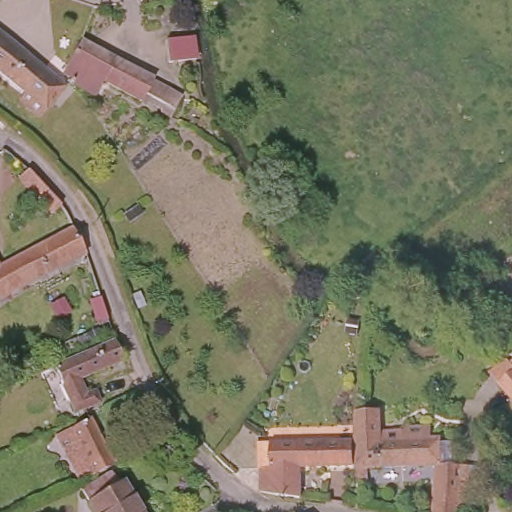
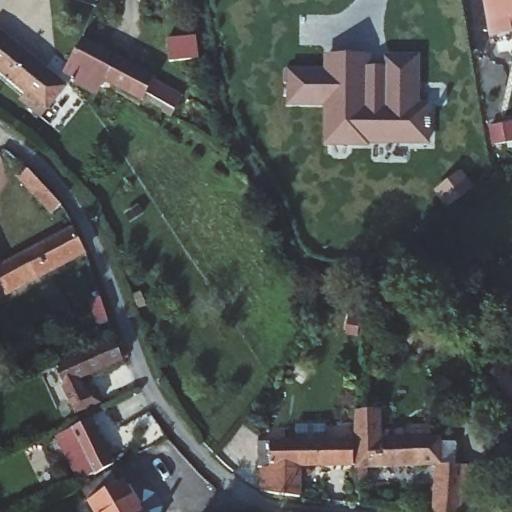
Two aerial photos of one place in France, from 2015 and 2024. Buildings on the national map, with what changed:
new [(490,37),(483,0),(512,0),(512,27),(512,34),(490,37)]
unchanged [(45,107),(0,71),(0,35),(64,86),(61,88),(45,107)]
unchanged [(171,63),(169,42),(195,38),(198,59),(171,63)]
unchanged [(151,76),(150,78),(179,93),(169,113),(159,107),(160,106),(156,104),(145,98),(143,101),(126,92),(122,90),(101,78),(94,91),(69,78),(71,76),(72,74),(62,70),(78,39),(151,76)]
new [(382,54),(421,55),(421,103),(431,102),(431,145),(323,147),(323,106),(287,107),(287,69),(323,69),(324,54),(370,54),(370,65),(382,65),(382,54)]
unchanged [(64,209),(59,213),(55,208),(50,213),(17,178),(26,170),(64,209)]
unchanged [(0,295),(0,266),(71,227),(84,251),(0,295)]
unchanged [(74,375),(82,390),(92,385),(97,395),(72,407),(51,363),(86,348),(85,346),(94,342),(95,345),(111,337),(118,355),(74,375)]
new [(500,385),(490,372),(512,355),(512,402),(500,385)]
unchanged [(47,374),(45,368),(50,366),(52,372),(47,374)]
unchanged [(129,387),(135,395),(97,415),(96,412),(91,413),(88,407),(129,387)]
unchanged [(429,512),(432,464),(349,466),(349,441),(351,412),(377,414),(376,433),(393,435),(401,429),(424,430),(424,441),(437,442),(437,447),(451,448),(451,472),(457,473),(475,475),(471,512),(429,512)]
unchanged [(65,424),(85,414),(110,461),(89,470),(65,424)]
unchanged [(293,462),(293,465),(293,471),(293,497),(271,494),(255,492),(255,467),(252,467),(252,440),(293,440),(293,462)]
unchanged [(347,465),(293,465),(293,462),(293,440),(347,441),(347,465)]
unchanged [(107,471),(115,482),(119,480),(137,512),(92,512),(78,488),(107,471)]

